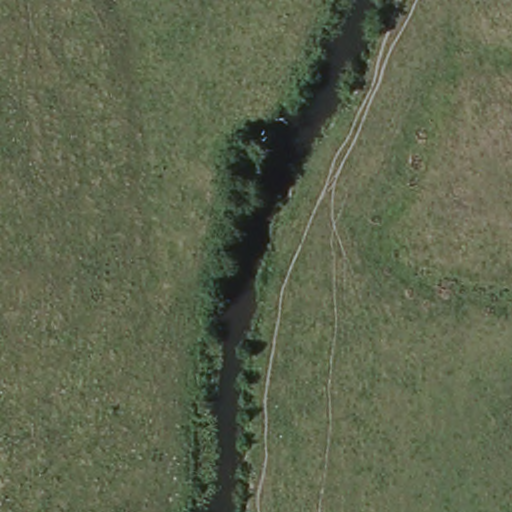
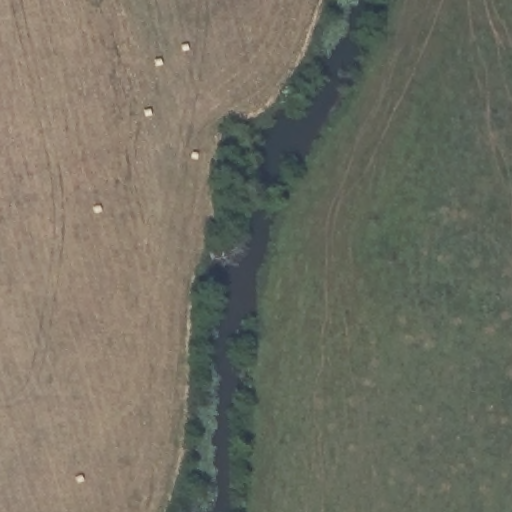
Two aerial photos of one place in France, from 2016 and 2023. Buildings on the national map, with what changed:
[]

